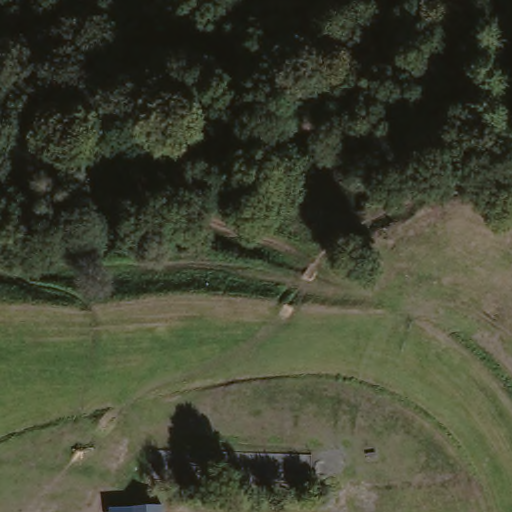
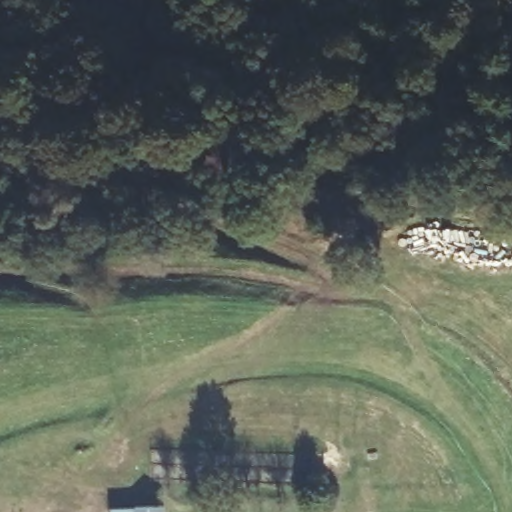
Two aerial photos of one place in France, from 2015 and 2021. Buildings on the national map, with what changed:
unchanged [(169,512),(141,512),(140,497),(168,496),(169,512)]

